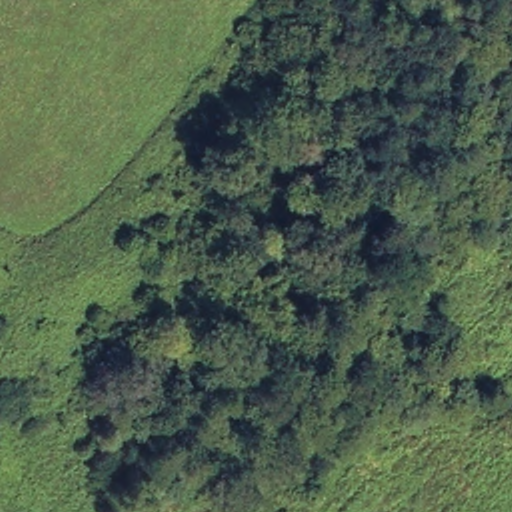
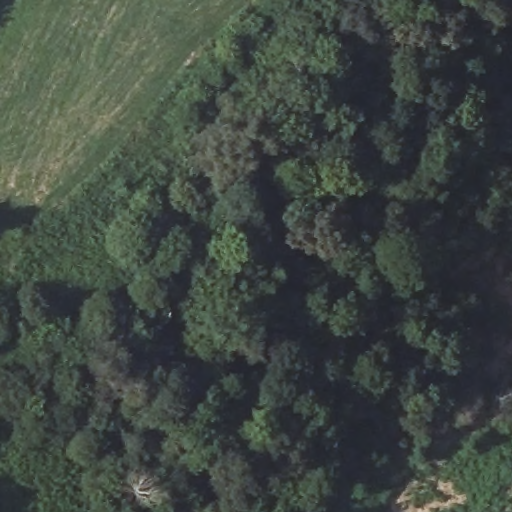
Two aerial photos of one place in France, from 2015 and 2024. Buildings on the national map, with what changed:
[]

